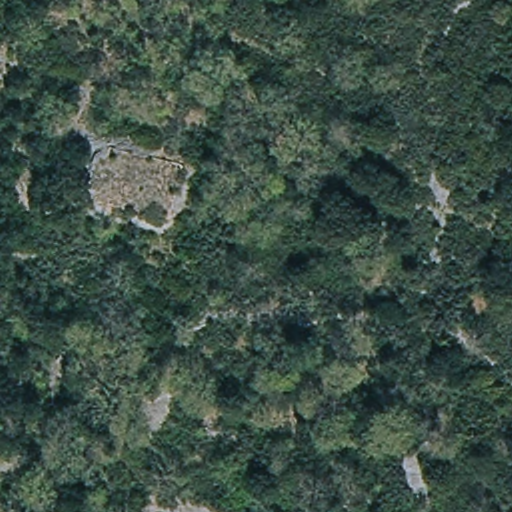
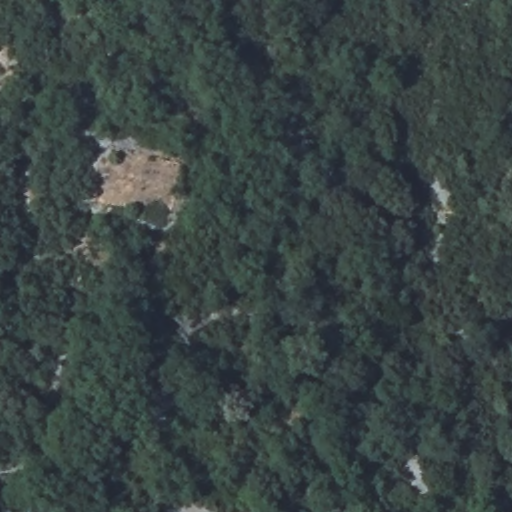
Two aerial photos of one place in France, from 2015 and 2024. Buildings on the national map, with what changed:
[]

